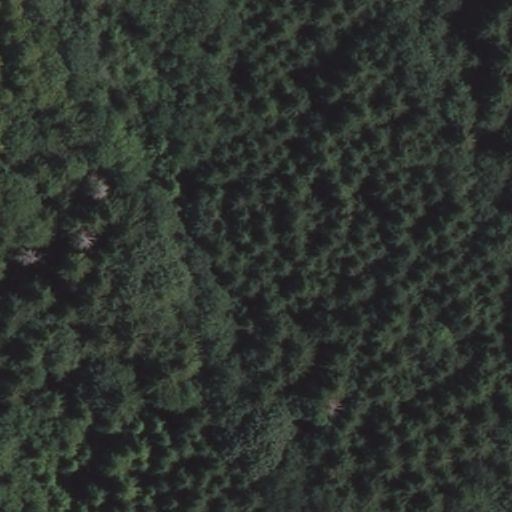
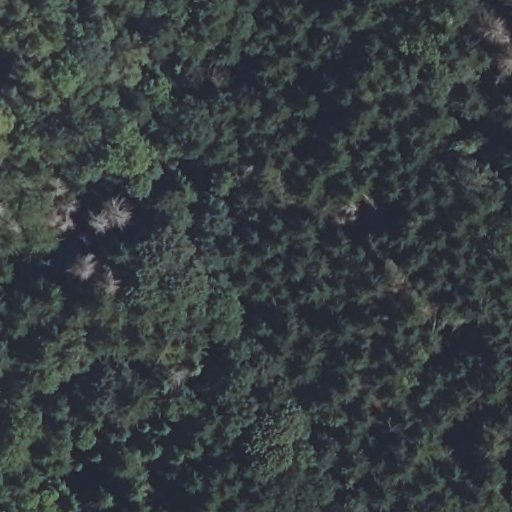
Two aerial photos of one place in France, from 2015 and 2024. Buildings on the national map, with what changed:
[]

